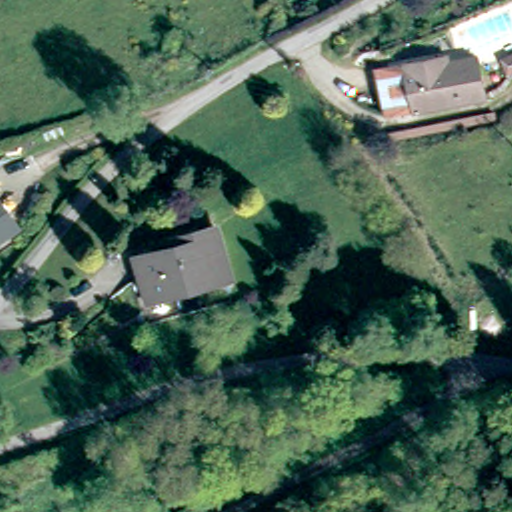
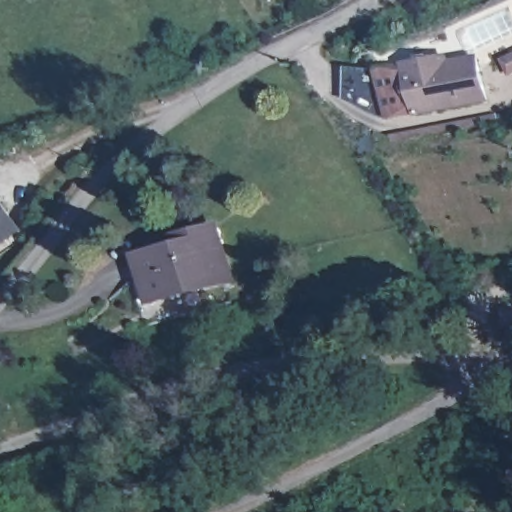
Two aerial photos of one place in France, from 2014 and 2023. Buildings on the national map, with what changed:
unchanged [(448,49),(450,60),(459,59),(458,55),(478,50),(487,90),(389,110),(381,63),(448,49)]
unchanged [(10,231),(0,238),(0,216),(10,231)]
unchanged [(152,295),(157,293),(145,257),(185,245),(183,237),(223,225),(237,275),(160,297),(160,298),(154,301),(152,295)]

